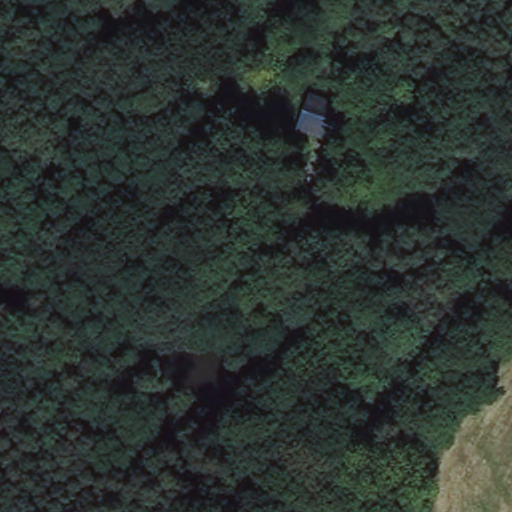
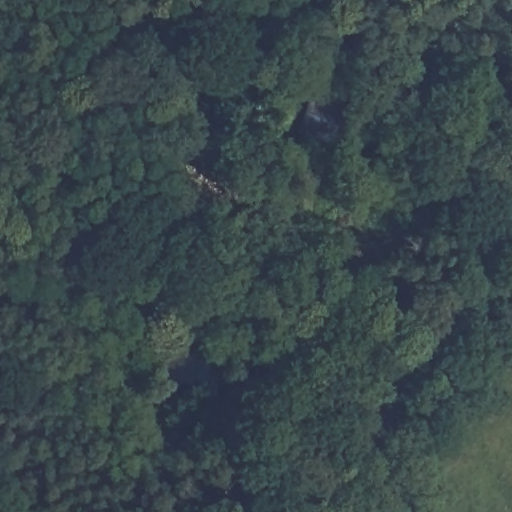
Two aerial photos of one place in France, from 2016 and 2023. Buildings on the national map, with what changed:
unchanged [(357,112),(339,157),(287,140),(303,96),(357,112)]
unchanged [(189,187),(169,132),(202,116),(220,175),(189,187)]

